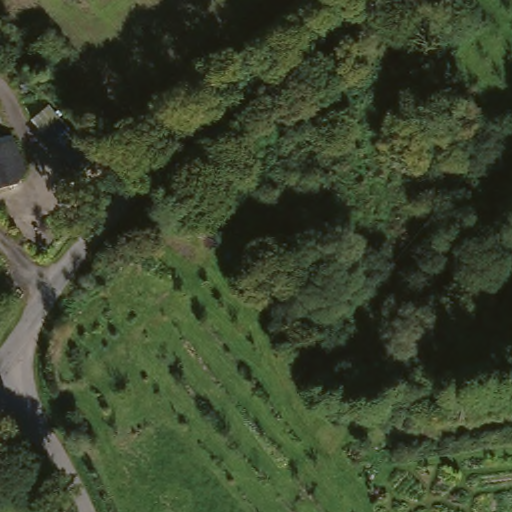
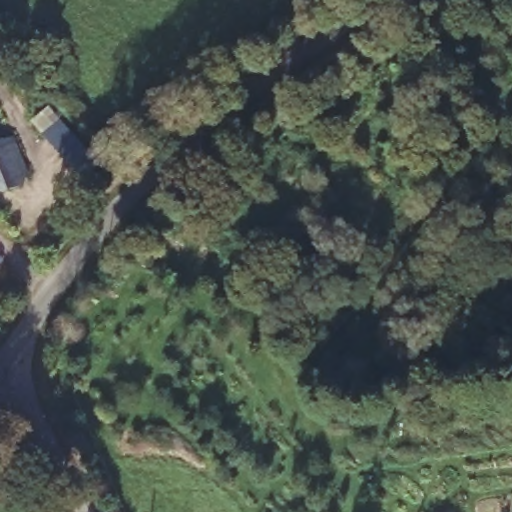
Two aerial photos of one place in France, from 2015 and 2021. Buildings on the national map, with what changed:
unchanged [(70,134),(106,171),(90,190),(30,129),(50,110),(70,134)]
unchanged [(9,141),(23,180),(14,184),(15,188),(0,195),(0,145),(9,141)]
unchanged [(240,263),(228,281),(205,268),(217,249),(240,263)]

